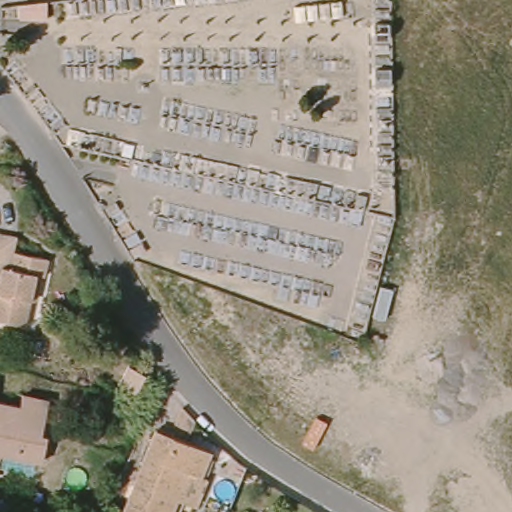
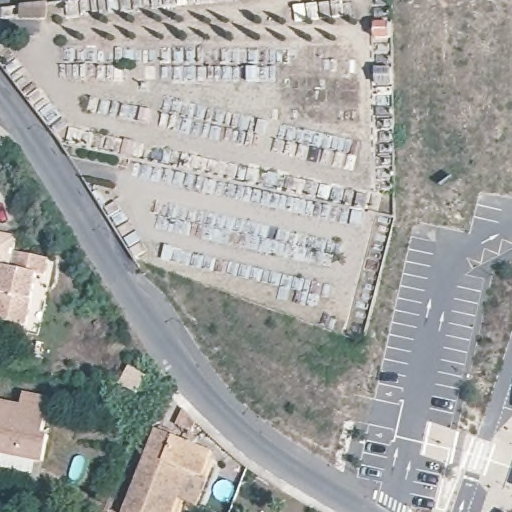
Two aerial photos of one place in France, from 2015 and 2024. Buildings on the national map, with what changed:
unchanged [(0,249),(2,242),(29,248),(25,266),(60,273),(57,290),(48,289),(35,339),(2,330),(13,280),(0,277),(0,249)]
unchanged [(32,392),(57,398),(50,431),(54,432),(48,458),(8,450),(4,464),(2,475),(0,475),(0,397),(29,403),(32,392)]
unchanged [(187,466),(166,512),(129,512),(122,509),(158,423),(210,445),(207,451),(198,471),(187,466)]

